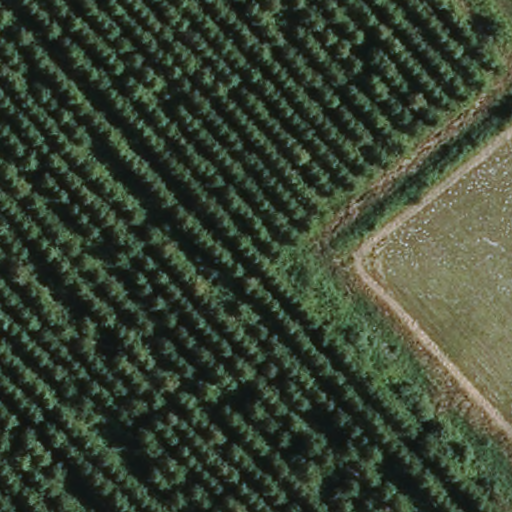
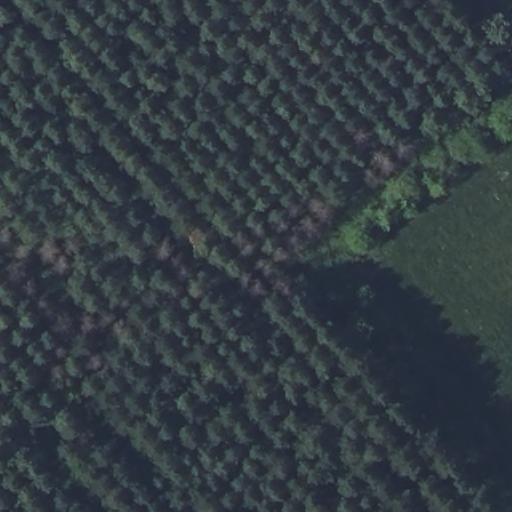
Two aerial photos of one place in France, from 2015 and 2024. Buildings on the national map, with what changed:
[]

